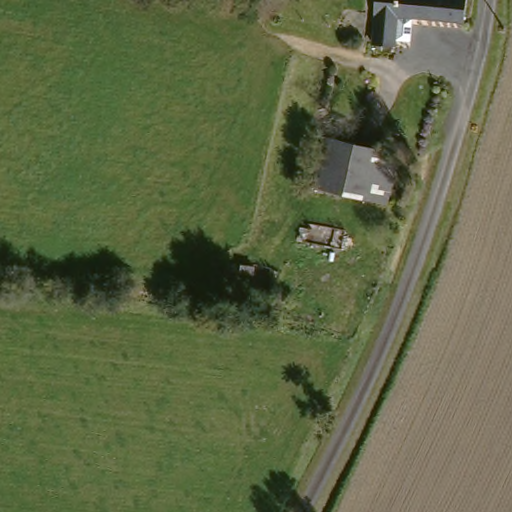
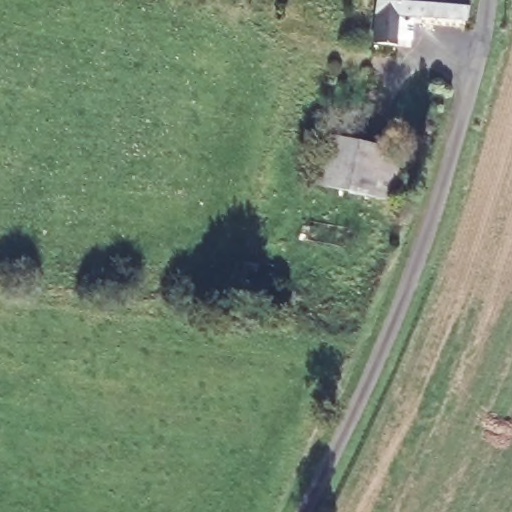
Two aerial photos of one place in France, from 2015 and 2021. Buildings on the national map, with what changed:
unchanged [(397,11),(391,45),(369,41),(376,0),(399,0),(397,11)]
unchanged [(466,21),(397,11),(399,0),(472,0),(466,21)]
unchanged [(340,174),(338,188),(314,184),(323,137),(346,141),(340,174)]
unchanged [(394,149),(386,197),(338,188),(340,174),(346,141),(394,149)]

